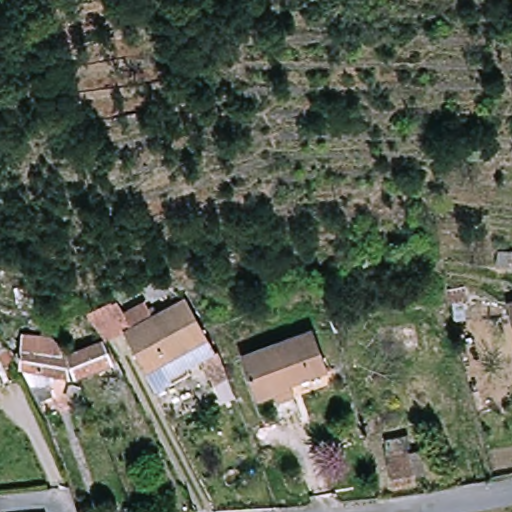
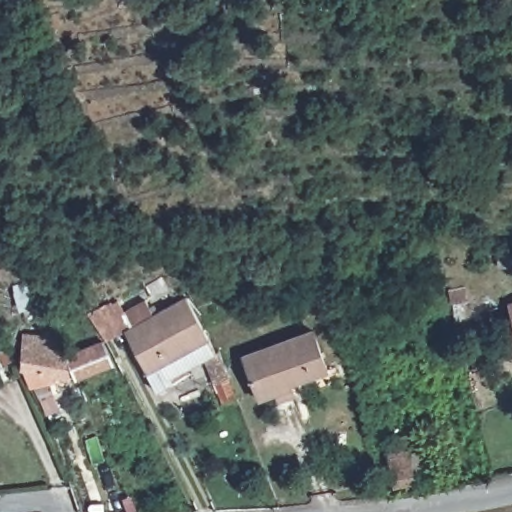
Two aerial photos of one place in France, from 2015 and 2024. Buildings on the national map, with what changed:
unchanged [(48,333),(66,352),(101,337),(91,312),(114,301),(122,308),(142,298),(143,298),(150,315),(118,331),(121,337),(107,341),(117,361),(83,379),(22,371),(23,331),(48,333)]
unchanged [(213,360),(175,377),(170,367),(162,370),(166,378),(160,382),(162,386),(145,392),(121,337),(118,331),(150,315),(184,299),(215,352),(222,350),(236,381),(225,387),(213,360)]
unchanged [(506,307),(512,306),(512,332),(506,307)]
unchanged [(275,393),(259,399),(240,355),(310,325),(326,362),(332,375),(277,399),(275,393)]
unchanged [(395,484),(385,453),(407,447),(417,478),(395,484)]

